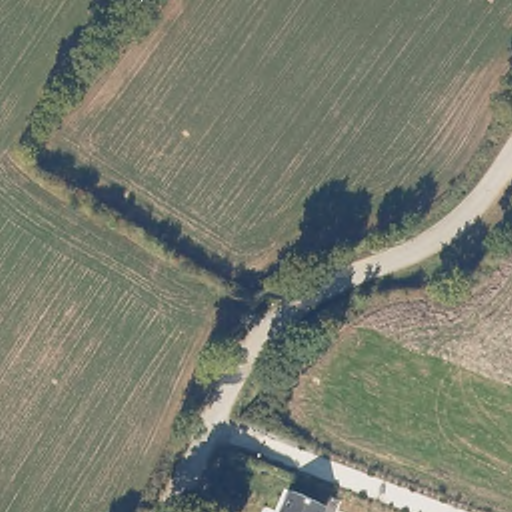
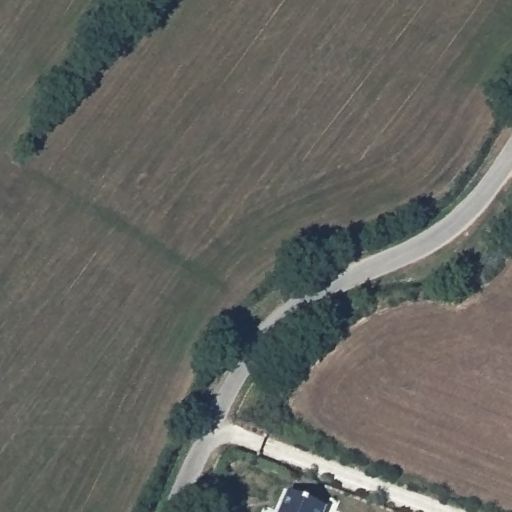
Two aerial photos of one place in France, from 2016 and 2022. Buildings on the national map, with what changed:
unchanged [(321,511),(321,512),(278,512),(284,496),(321,511)]

